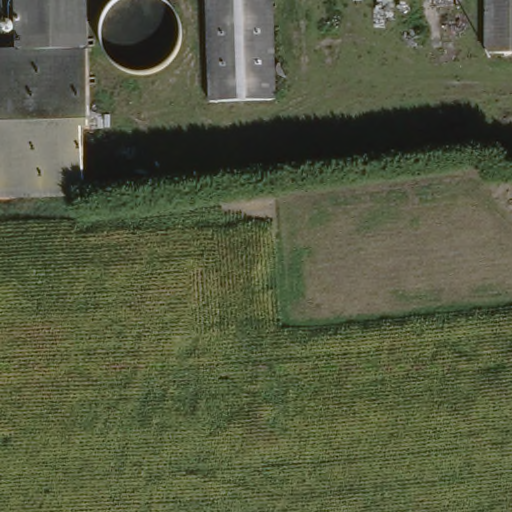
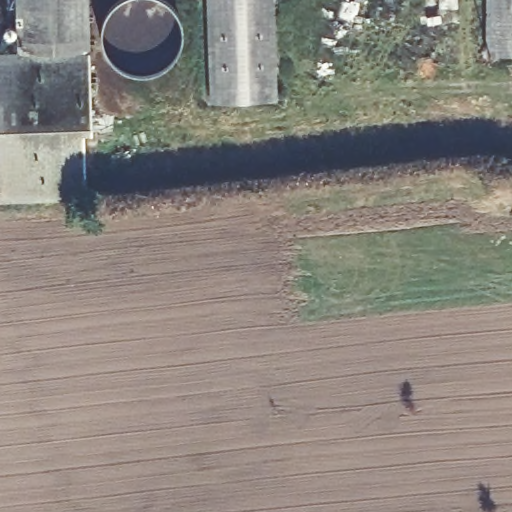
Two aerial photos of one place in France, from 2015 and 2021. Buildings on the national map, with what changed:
unchanged [(0,128),(0,45),(13,45),(12,0),(86,0),(91,118),(28,125),(0,128)]
unchanged [(205,0),(270,0),(272,94),(273,100),(205,101),(205,0)]
unchanged [(482,56),(484,0),(512,0),(512,58),(482,56)]
unchanged [(91,118),(91,138),(83,139),(84,202),(0,203),(0,128),(28,125),(91,118)]

